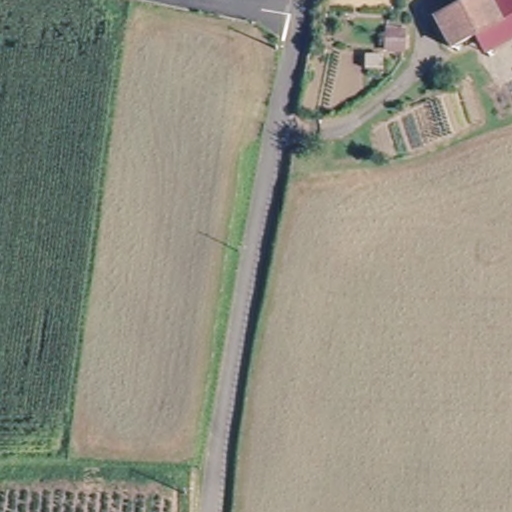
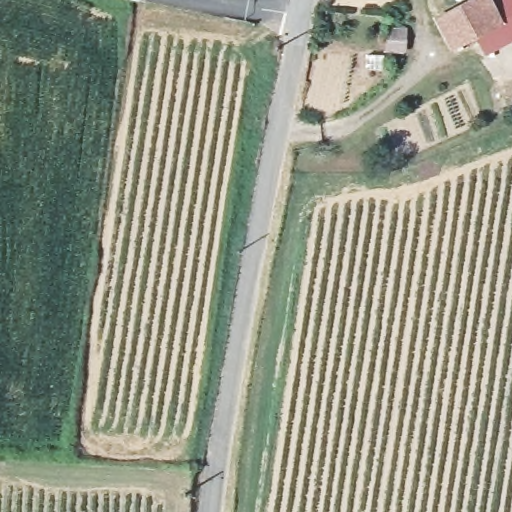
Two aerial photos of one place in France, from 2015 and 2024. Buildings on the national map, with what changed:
unchanged [(476,0),(487,0),(493,13),(498,26),(476,38),(456,50),(437,21),(476,0)]
unchanged [(493,13),(487,0),(512,0),(512,41),(485,55),(476,38),(498,26),(493,13)]

